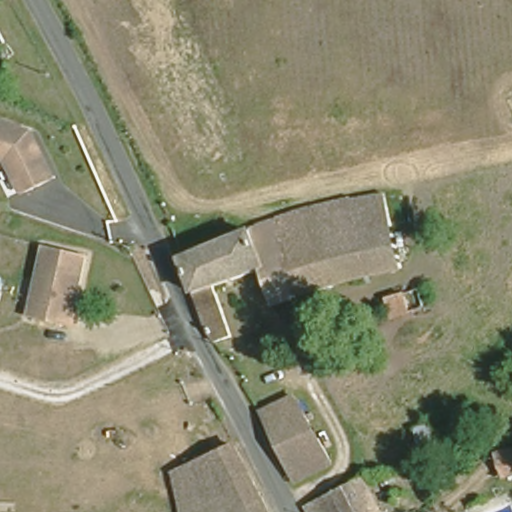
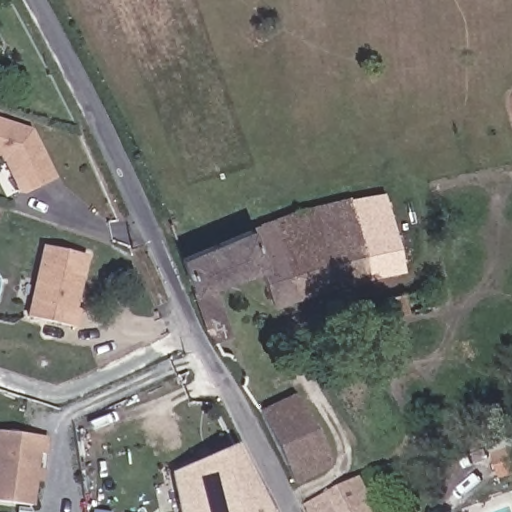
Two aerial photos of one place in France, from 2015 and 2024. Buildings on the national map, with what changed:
unchanged [(19,190),(4,159),(0,158),(0,120),(29,130),(31,134),(37,145),(53,177),(23,191),(19,190)]
unchanged [(259,219),(312,203),(384,190),(389,217),(356,224),(368,268),(328,279),(272,297),(261,264),(214,281),(231,329),(214,335),(208,323),(181,253),(259,219)]
unchanged [(400,261),(368,268),(356,224),(389,217),(400,261)]
unchanged [(73,308),(78,309),(74,328),(26,317),(43,245),(84,255),(73,308)]
unchanged [(269,425),(259,407),(296,389),(333,458),(295,476),(269,425)]
new [(35,451),(30,503),(0,499),(0,430),(43,434),(41,452),(35,451)]
unchanged [(264,500),(233,512),(206,512),(195,463),(229,448),(235,445),(264,500)]
unchanged [(502,477),(495,456),(512,450),(512,473),(502,477)]
unchanged [(206,512),(181,512),(172,473),(195,463),(206,512)]
unchanged [(307,504),(361,477),(380,512),(311,512),(307,504)]
unchanged [(268,512),(233,512),(264,500),(268,512)]

